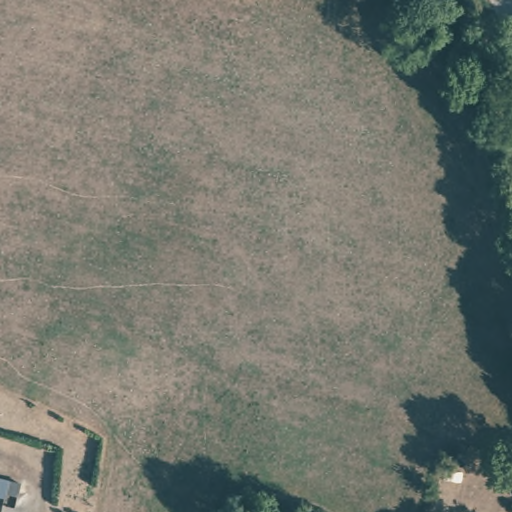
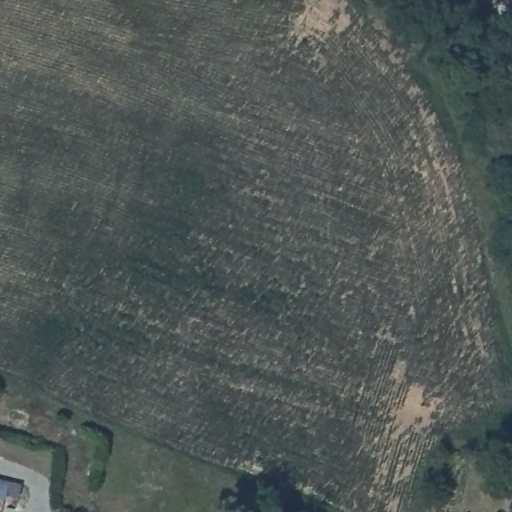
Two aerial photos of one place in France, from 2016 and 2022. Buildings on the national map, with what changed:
unchanged [(23,480),(20,494),(8,491),(7,495),(0,494),(0,475),(23,480)]

